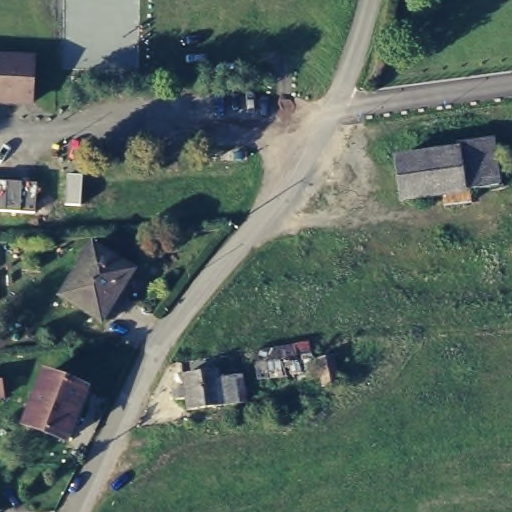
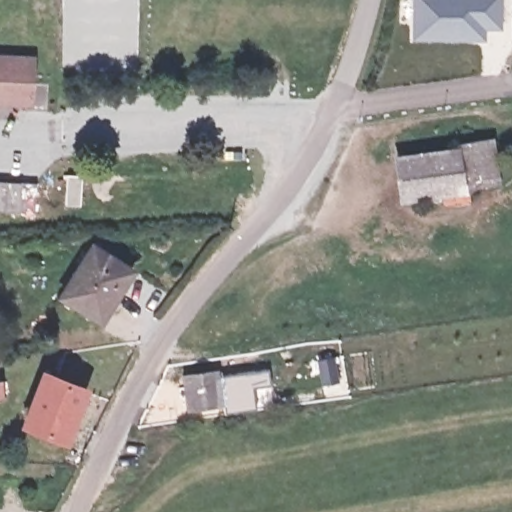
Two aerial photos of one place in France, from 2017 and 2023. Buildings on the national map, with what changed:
new [(499,0),(499,25),(483,25),(483,38),(431,37),(414,38),(414,29),(414,0),(499,0)]
unchanged [(26,98),(0,96),(0,48),(26,49),(26,98)]
unchanged [(454,141),(494,138),(499,182),(460,188),(455,149),(454,141)]
unchanged [(460,188),(401,194),(397,157),(455,149),(460,188)]
unchanged [(0,210),(0,182),(37,184),(36,212),(0,210)]
unchanged [(68,297),(95,247),(133,273),(103,320),(68,297)]
unchanged [(176,389),(186,387),(186,377),(219,373),(221,379),(243,376),(246,401),(194,408),(191,399),(178,398),(176,389)]
unchanged [(48,381),(83,393),(69,439),(31,426),(48,381)]
unchanged [(0,398),(0,385),(3,398),(0,398)]

